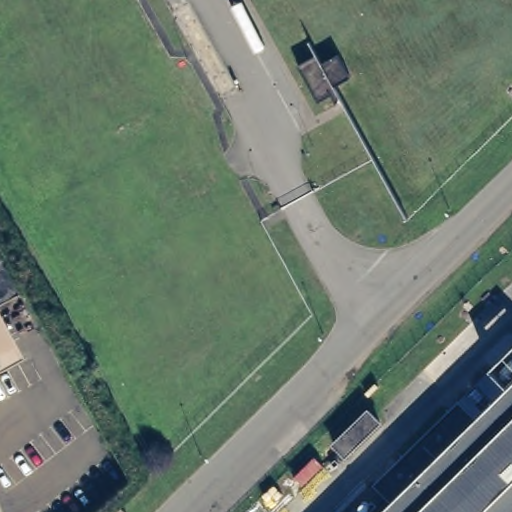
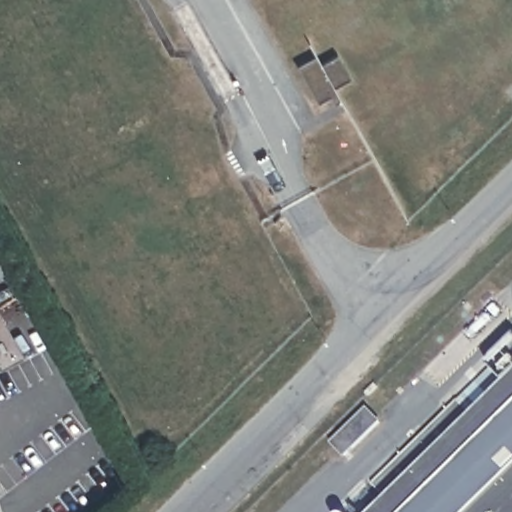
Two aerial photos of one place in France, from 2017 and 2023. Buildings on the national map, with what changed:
unchanged [(337,103),(337,105),(331,95),(318,103),(297,65),(317,55),(322,64),(337,55),(351,79),(335,87),(342,100),(337,103)]
unchanged [(395,503),(378,485),(463,401),(497,368),(512,353),(512,512),(386,512),(395,503)]
unchanged [(368,410),(380,423),(345,456),(333,444),(368,410)]
unchanged [(140,489),(149,498),(140,506),(132,497),(140,489)]

